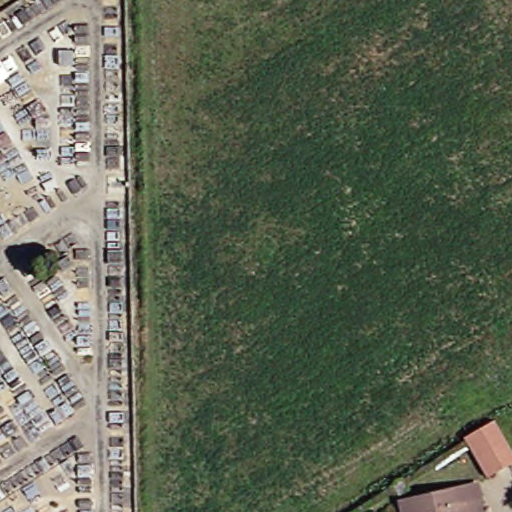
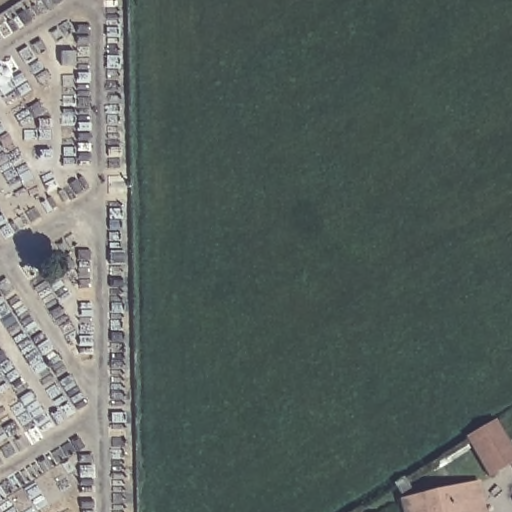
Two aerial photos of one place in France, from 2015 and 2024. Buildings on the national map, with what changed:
unchanged [(510,464),(480,481),(457,441),(487,424),(510,464)]
unchanged [(472,486),(477,512),(402,512),(400,499),(472,486)]

